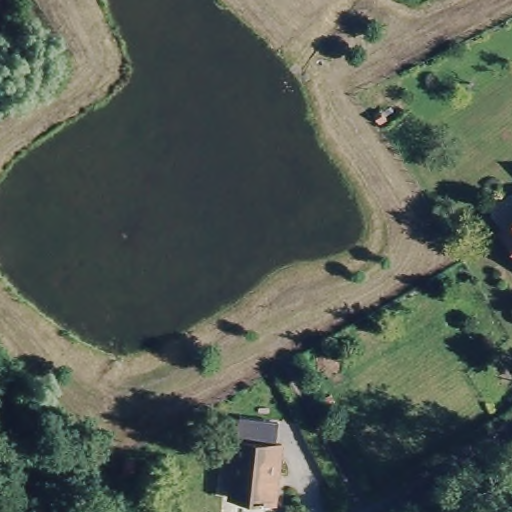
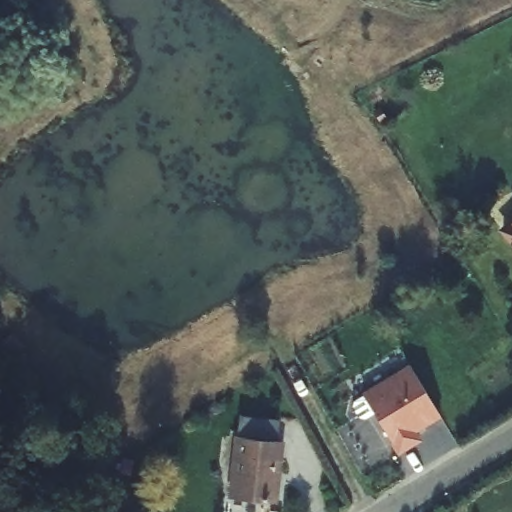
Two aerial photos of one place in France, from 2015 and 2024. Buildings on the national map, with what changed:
unchanged [(25,36),(0,54),(0,41),(18,28),(25,36)]
unchanged [(498,230),(512,218),(512,245),(498,230)]
new [(410,365),(440,416),(414,431),(420,440),(398,453),(362,394),(410,365)]
unchanged [(275,502),(230,497),(237,438),(282,443),(275,502)]

